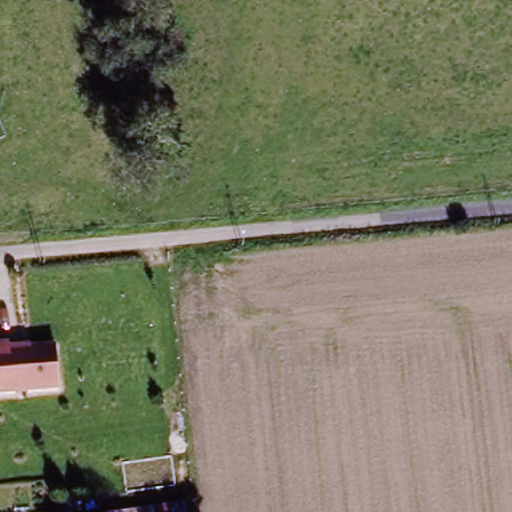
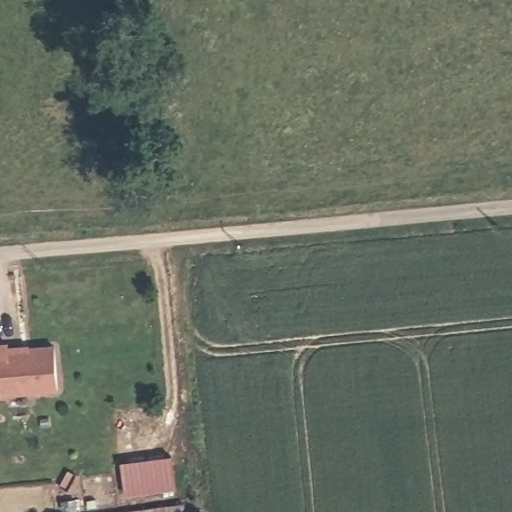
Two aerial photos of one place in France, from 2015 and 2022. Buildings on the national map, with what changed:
unchanged [(0,342),(57,339),(57,388),(0,390),(0,342)]
new [(175,455),(180,485),(130,493),(125,462),(175,455)]
unchanged [(180,507),(181,512),(149,512),(180,507)]

